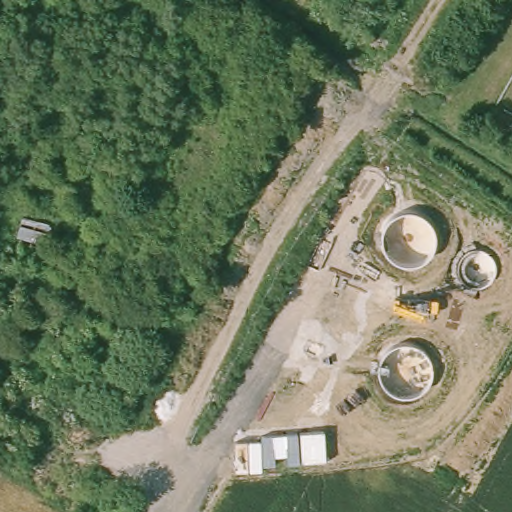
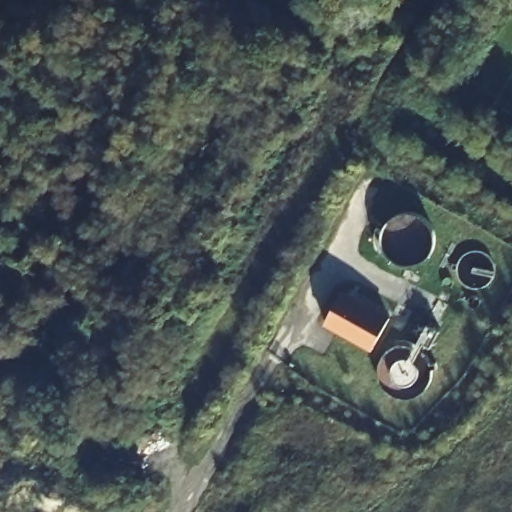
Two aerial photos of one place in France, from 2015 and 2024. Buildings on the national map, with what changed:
new [(341,292),(388,319),(371,349),(324,321),(341,292)]

